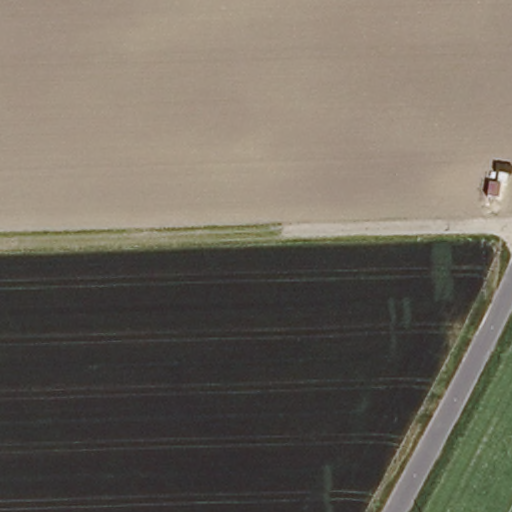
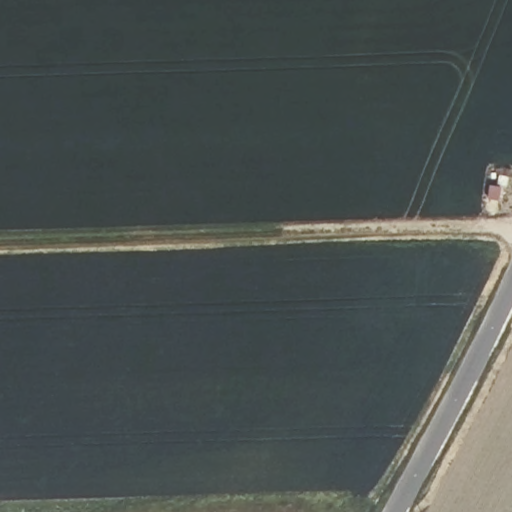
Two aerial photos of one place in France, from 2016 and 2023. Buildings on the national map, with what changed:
unchanged [(500,193),(486,195),(485,180),(498,178),(500,193)]

